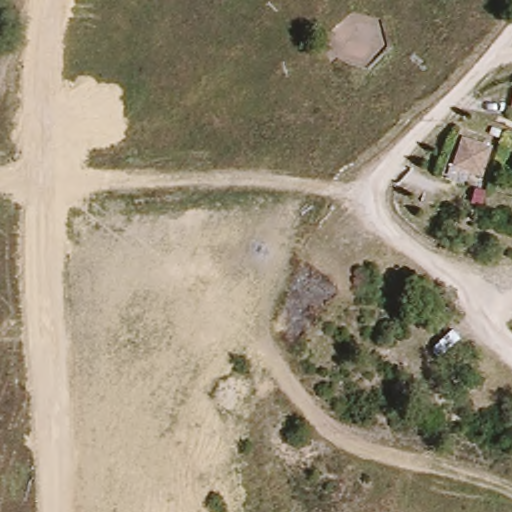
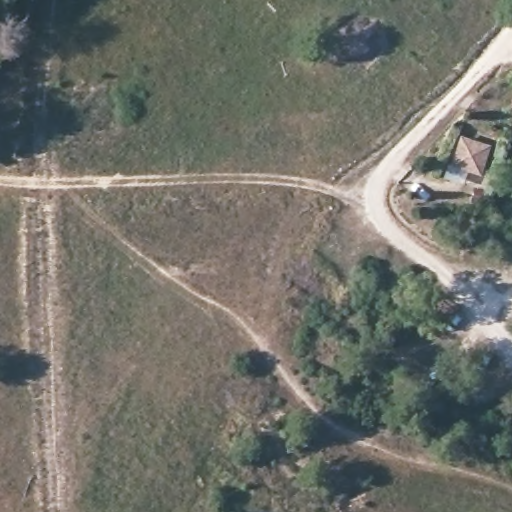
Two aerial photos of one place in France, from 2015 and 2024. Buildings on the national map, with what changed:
unchanged [(512,102),(512,106),(510,106),(512,102)]
unchanged [(466,145),(492,152),(484,180),(458,172),(466,145)]

